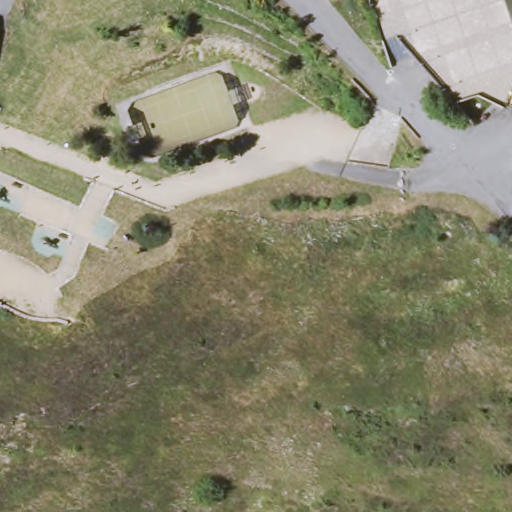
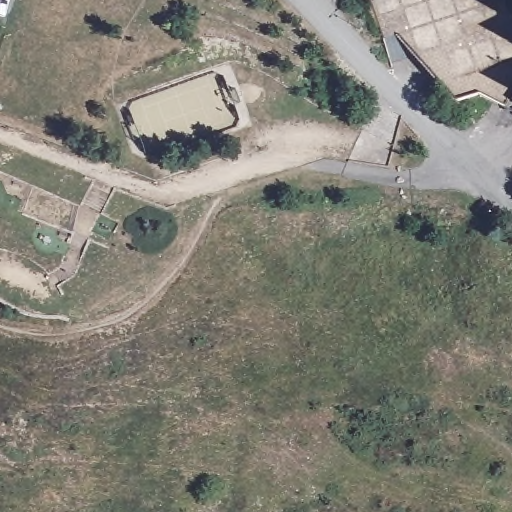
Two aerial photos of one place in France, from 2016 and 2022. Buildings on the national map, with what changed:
unchanged [(416,61),(392,34),(379,38),(367,0),(512,0),(512,31),(416,61)]

